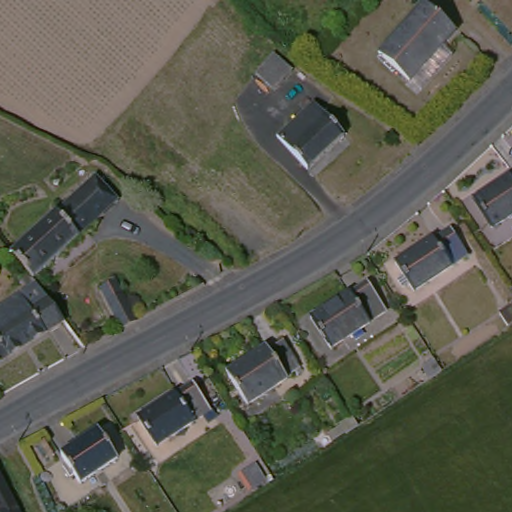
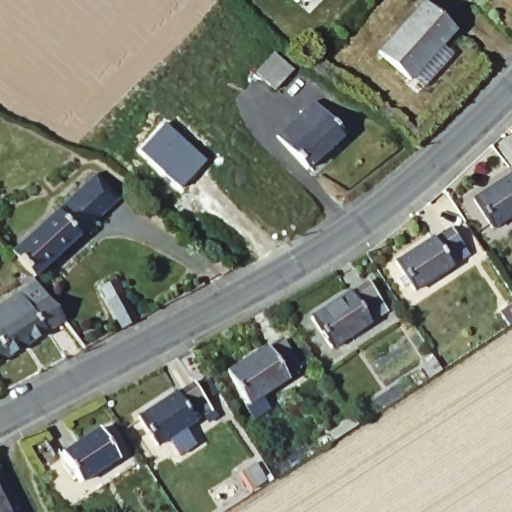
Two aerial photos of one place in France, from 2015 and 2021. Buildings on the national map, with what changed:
new [(286,0),(288,0),(287,1),(286,0)]
unchanged [(451,31),(438,44),(449,54),(413,87),(375,47),(422,3),(451,31)]
unchanged [(292,72),(273,90),(256,73),(276,55),(292,72)]
unchanged [(343,137),(308,170),(279,139),(314,105),(343,137)]
new [(166,125),(206,164),(181,190),(140,151),(166,125)]
unchanged [(90,174),(113,200),(31,280),(10,256),(90,174)]
unchanged [(495,223),(479,198),(512,178),(512,212),(495,223)]
unchanged [(463,253),(415,285),(399,260),(446,228),(463,253)]
unchanged [(139,315),(118,327),(97,287),(114,278),(139,315)]
unchanged [(71,324),(0,362),(0,307),(37,286),(71,324)]
unchanged [(363,304),(379,330),(330,362),(313,335),(363,304)]
unchanged [(301,362),(244,398),(228,371),(284,336),(301,362)]
unchanged [(207,412),(155,445),(139,420),(191,387),(207,412)]
unchanged [(97,436),(110,457),(76,479),(63,458),(97,436)]
unchanged [(22,512),(0,512),(0,471),(8,485),(22,512)]

